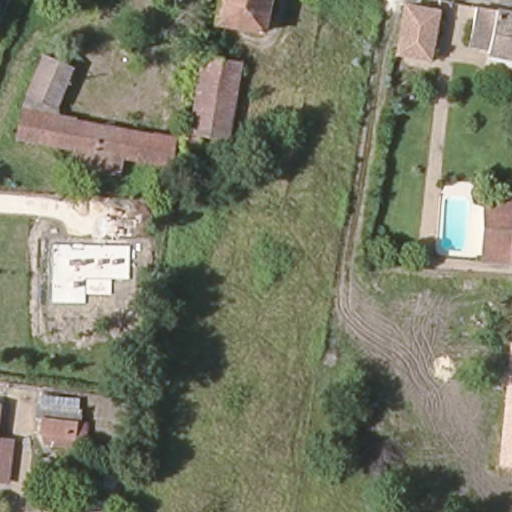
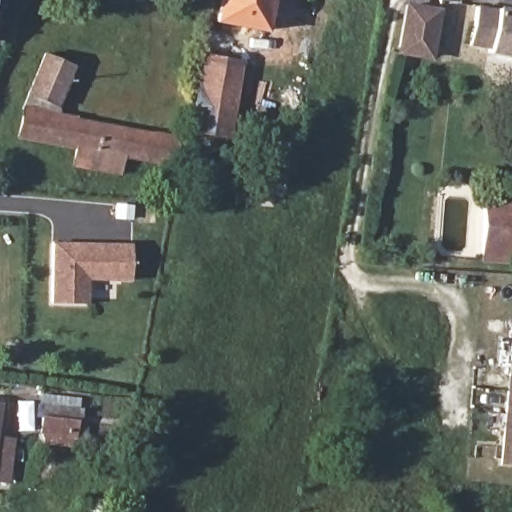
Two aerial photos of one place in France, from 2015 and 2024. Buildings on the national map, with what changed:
unchanged [(268,28),(219,19),(222,0),(273,0),(268,28)]
unchanged [(485,43),(468,40),(475,3),(493,7),(494,5),(512,9),(512,51),(484,45),(485,43)]
unchanged [(442,9),(434,56),(405,51),(413,4),(442,9)]
unchanged [(55,113),(183,137),(179,166),(154,161),(126,156),(124,161),(121,174),(75,166),(76,162),(79,146),(44,140),(31,137),(22,136),(25,111),(47,54),(75,66),(55,113)]
unchanged [(246,62),(235,135),(196,129),(208,55),(246,62)]
unchanged [(489,212),(489,198),(512,200),(512,260),(487,259),(489,212)]
new [(130,281),(87,280),(87,304),(50,303),(50,241),(131,242),(130,281)]
unchanged [(512,315),(512,466),(498,465),(512,315)]
unchanged [(76,403),(72,444),(46,441),(48,426),(41,425),(44,400),(76,403)]
unchanged [(7,482),(0,481),(0,438),(12,440),(7,482)]
unchanged [(82,505),(84,499),(117,504),(117,512),(76,512),(77,505),(82,505)]

